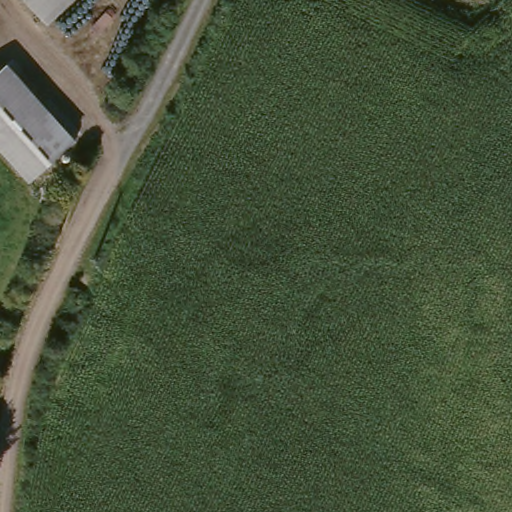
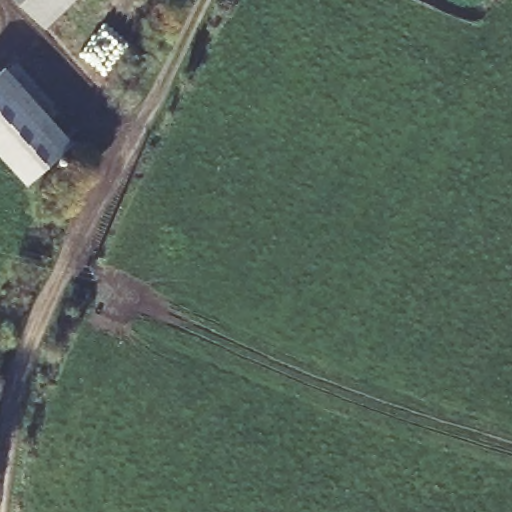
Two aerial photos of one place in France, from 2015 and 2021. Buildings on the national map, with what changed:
unchanged [(43,27),(18,0),(72,0),(43,27)]
unchanged [(28,182),(0,152),(0,69),(5,64),(74,139),(28,182)]

